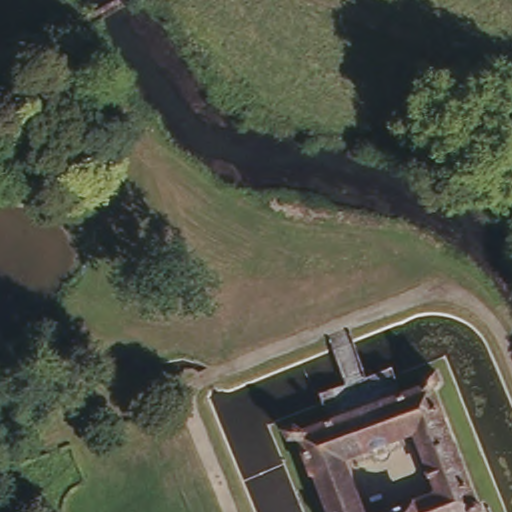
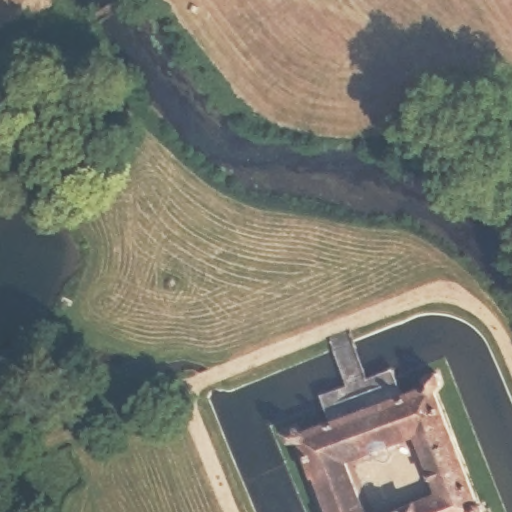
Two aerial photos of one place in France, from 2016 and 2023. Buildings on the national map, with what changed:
unchanged [(329,412),(321,394),(385,371),(395,389),(433,377),(430,367),(443,363),(446,376),(437,380),(480,512),(381,512),(435,494),(413,431),(335,459),(356,512),(313,512),(283,428),(295,423),(329,412)]

